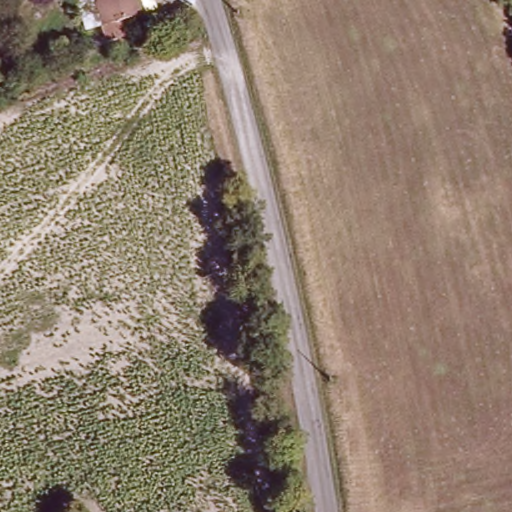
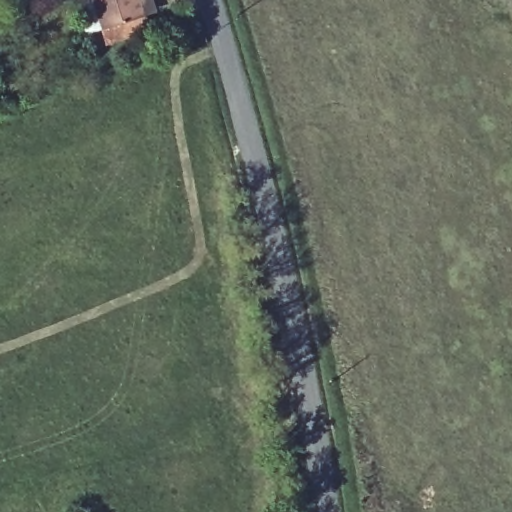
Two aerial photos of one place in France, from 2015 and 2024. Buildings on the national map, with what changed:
unchanged [(145,17),(106,31),(97,0),(139,0),(145,17)]

